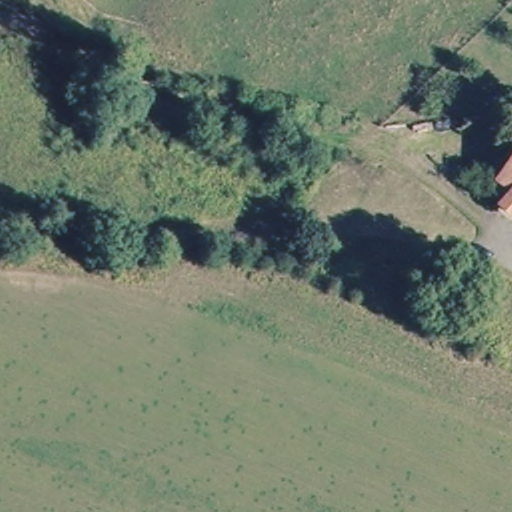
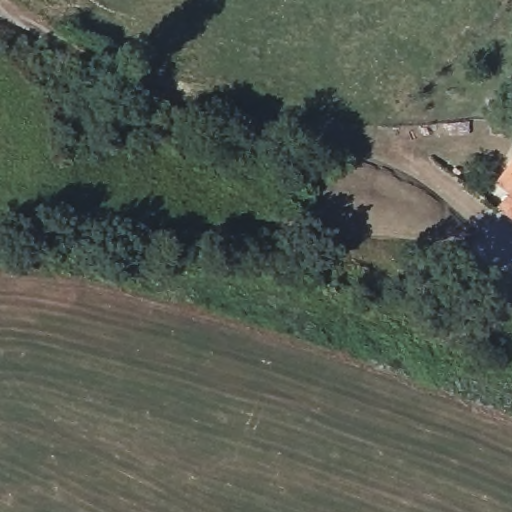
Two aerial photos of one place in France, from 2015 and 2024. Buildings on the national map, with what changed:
unchanged [(501,184),(512,170),(512,193),(501,184)]

